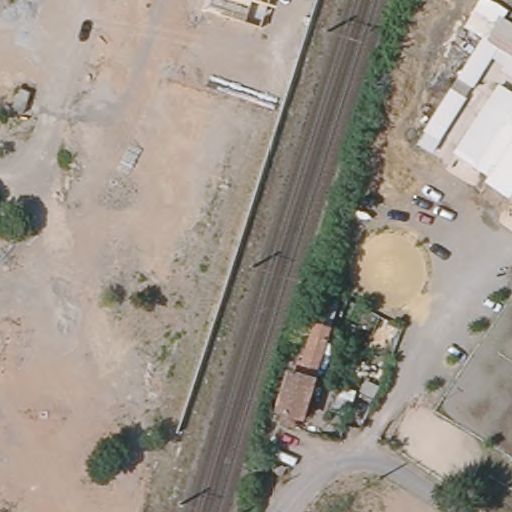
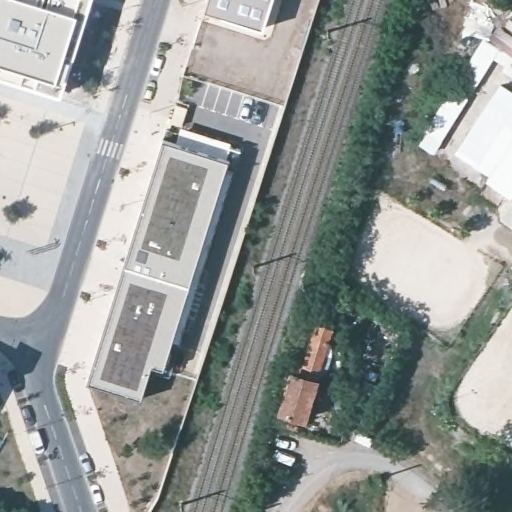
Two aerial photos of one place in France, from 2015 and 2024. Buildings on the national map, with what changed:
new [(71,45),(52,97),(0,79),(0,0),(85,0),(71,45)]
new [(260,28),(202,9),(205,0),(270,0),(260,28)]
unchanged [(478,32),(496,6),(512,16),(512,55),(485,37),(478,32)]
unchanged [(512,81),(502,75),(505,70),(493,64),(473,91),(459,81),(485,37),(512,55),(512,81)]
unchanged [(419,144),(452,91),(465,101),(434,156),(419,144)]
unchanged [(485,187),(488,181),(471,169),(512,111),(512,199),(509,204),(485,187)]
new [(163,138),(178,142),(181,132),(229,146),(241,150),(235,171),(228,169),(174,340),(166,369),(153,365),(143,400),(88,383),(163,138)]
new [(228,169),(235,171),(181,342),(174,340),(228,169)]
demolished [(0,294),(0,249),(27,258),(13,298),(0,294)]
unchanged [(298,417),(294,430),(278,425),(283,410),(280,409),(291,374),(295,375),(301,361),(305,362),(318,323),(332,327),(304,419),(298,417)]
demolished [(46,449),(0,424),(0,370),(5,360),(120,418),(85,485),(38,462),(46,449)]

